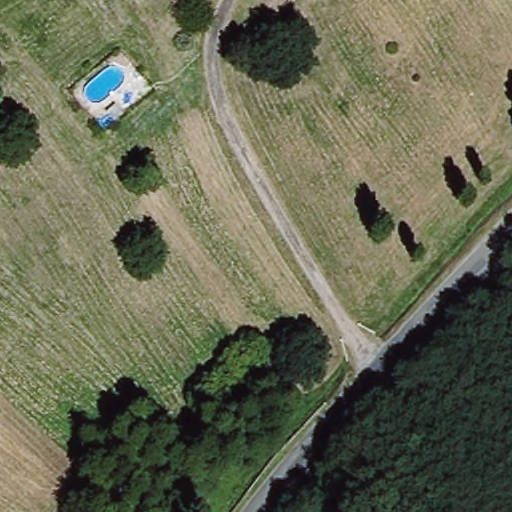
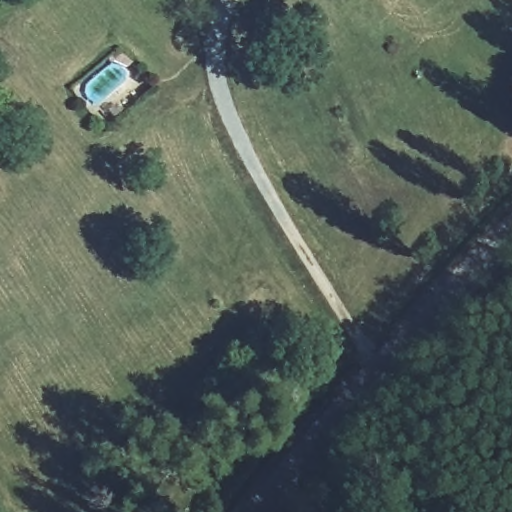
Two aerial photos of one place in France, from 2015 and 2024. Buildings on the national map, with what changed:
[]

